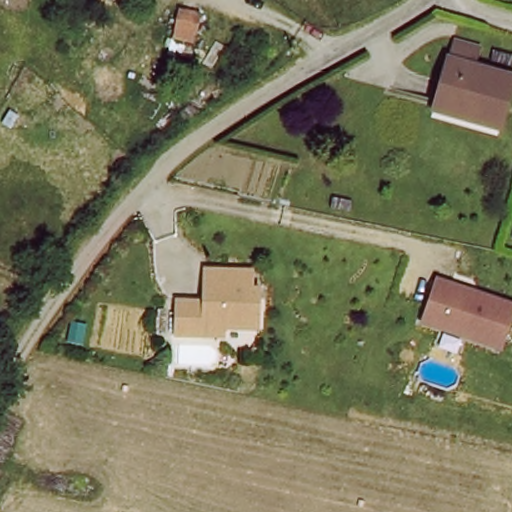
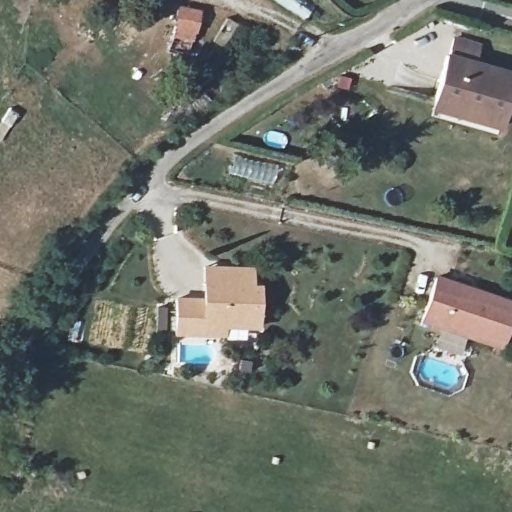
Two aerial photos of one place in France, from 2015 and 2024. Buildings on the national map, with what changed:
unchanged [(198,11),(195,32),(174,30),(176,8),(198,11)]
unchanged [(447,66),(448,67),(454,49),(479,56),(473,75),(512,85),(512,87),(500,129),(435,110),(447,66)]
unchanged [(196,338),(168,337),(169,302),(196,304),(197,271),(205,271),(245,273),(245,290),(252,291),(251,314),(251,331),(238,331),(216,330),(216,338),(196,338)]
unchanged [(499,347),(420,320),(434,277),(469,289),(495,298),(512,304),(512,307),(499,347)]

